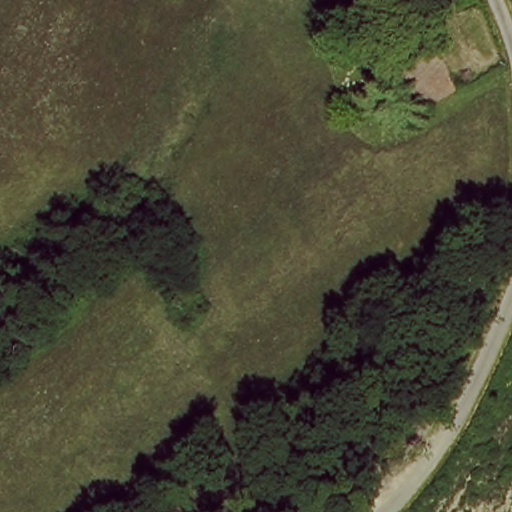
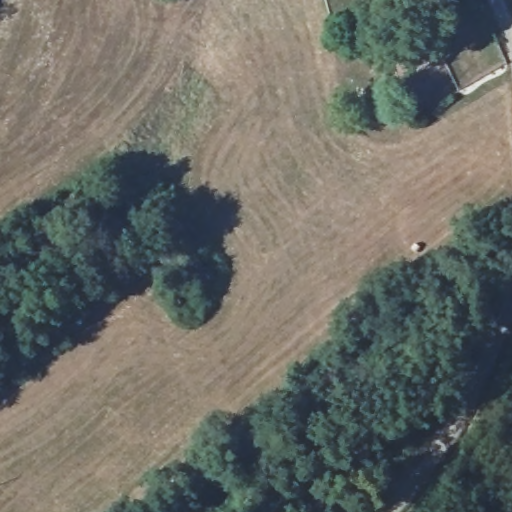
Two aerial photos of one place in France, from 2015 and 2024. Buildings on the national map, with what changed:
unchanged [(382,0),(417,0),(420,6),(390,19),(382,0)]

